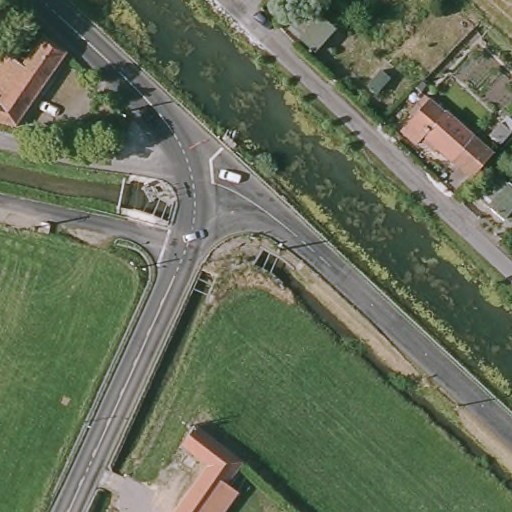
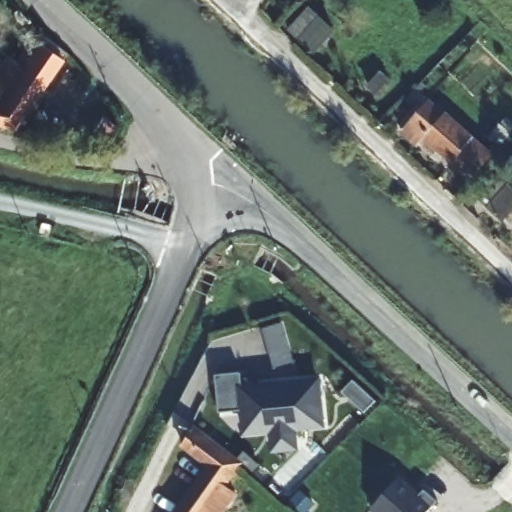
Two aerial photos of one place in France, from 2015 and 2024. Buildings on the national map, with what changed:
unchanged [(308,7),(335,29),(314,54),(288,30),(308,7)]
unchanged [(0,130),(0,70),(8,60),(21,69),(45,39),(66,56),(9,132),(0,130)]
unchanged [(382,66),(393,76),(381,89),(372,80),(382,66)]
unchanged [(443,148),(439,153),(426,143),(430,139),(427,136),(420,144),(407,133),(429,110),(424,105),(430,97),(497,154),(477,176),(443,148)]
unchanged [(512,186),(512,210),(501,222),(479,200),(500,176),(512,186)]
new [(262,328),(283,323),(290,349),(270,355),(262,328)]
new [(243,373),(243,383),(323,378),(327,429),(299,431),(299,450),(271,453),(271,434),(243,436),(241,411),(220,413),(218,375),(243,373)]
new [(353,380),(376,401),(365,413),(342,392),(353,380)]
unchanged [(208,469),(183,448),(191,429),(212,439),(225,450),(245,468),(226,488),(237,498),(224,512),(176,512),(208,469)]
new [(403,478),(421,495),(425,490),(439,503),(430,512),(373,512),(371,511),(403,478)]

